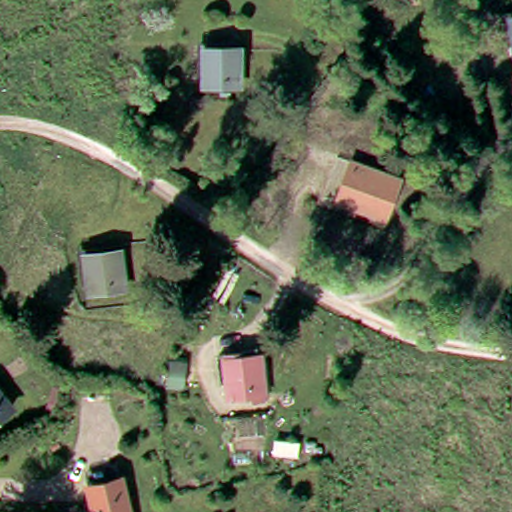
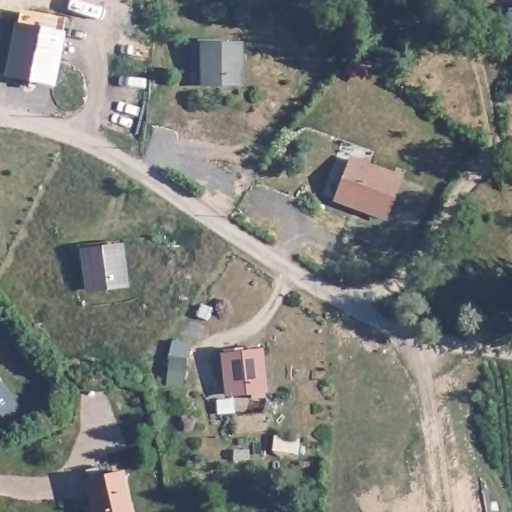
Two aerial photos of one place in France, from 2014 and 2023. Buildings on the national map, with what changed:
unchanged [(497,16),(512,13),(512,56),(504,57),(497,16)]
new [(61,37),(53,82),(9,73),(17,29),(61,37)]
unchanged [(206,58),(224,58),(224,49),(240,50),(236,87),(206,86),(206,58)]
unchanged [(403,173),(388,219),(334,200),(351,155),(403,173)]
unchanged [(101,253),(120,251),(120,286),(87,288),(87,262),(101,261),(101,253)]
unchanged [(239,370),(238,359),(260,357),(263,393),(227,396),(226,371),(239,370)]
unchanged [(13,409),(0,419),(0,392),(13,409)]
unchanged [(132,512),(98,512),(94,488),(128,483),(132,512)]

